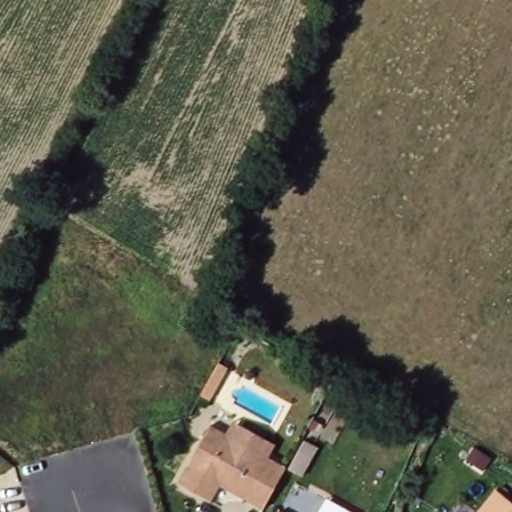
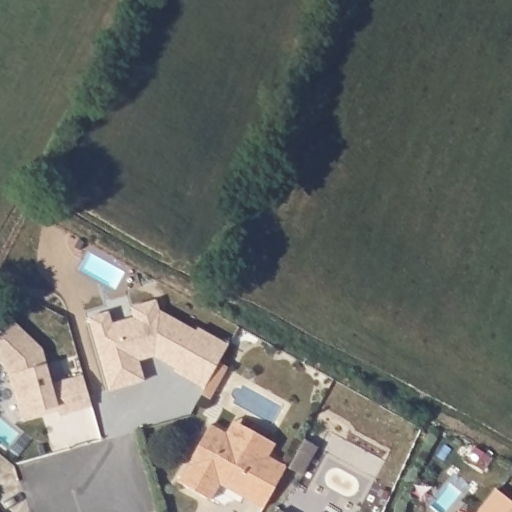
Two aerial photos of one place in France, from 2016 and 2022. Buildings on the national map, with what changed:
new [(210,400),(200,396),(204,390),(174,373),(175,370),(154,357),(140,361),(145,380),(109,390),(89,319),(109,312),(112,322),(132,317),(129,308),(156,300),(159,311),(196,332),(197,327),(228,343),(220,362),(227,365),(210,400)]
new [(92,407),(75,412),(59,417),(57,412),(42,416),(22,422),(7,371),(0,364),(0,333),(12,321),(41,350),(51,385),(66,381),(82,376),(92,407)]
unchanged [(262,508),(222,485),(210,501),(177,482),(210,423),(227,433),(234,422),(277,446),(271,459),(286,467),(262,508)]
new [(304,440),(317,447),(302,476),(288,468),(304,440)]
unchanged [(497,488),(512,500),(512,512),(478,512),(497,488)]
unchanged [(279,510),(283,512),(278,512),(279,510)]

